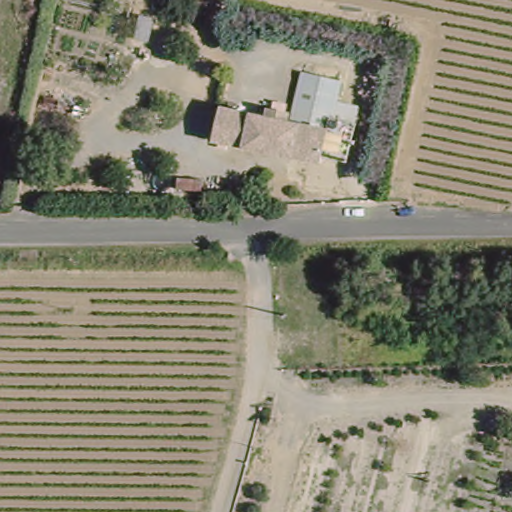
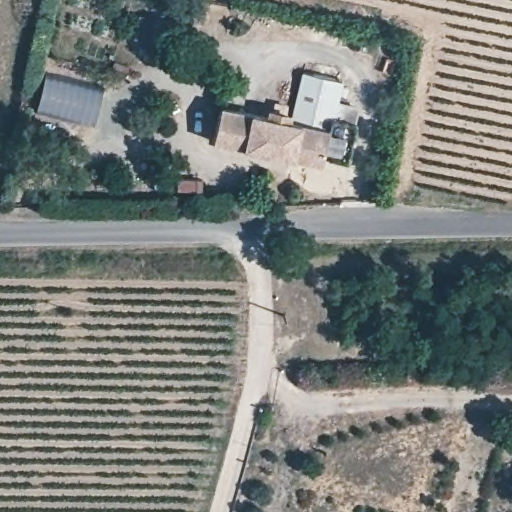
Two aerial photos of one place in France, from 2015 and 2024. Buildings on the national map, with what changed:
unchanged [(303,73),(342,81),(337,101),(359,106),(346,161),(323,155),(321,164),(213,142),(219,107),(265,116),(267,107),(291,112),(289,120),(292,121),(303,73)]
new [(45,74),(103,89),(93,124),(36,109),(45,74)]

